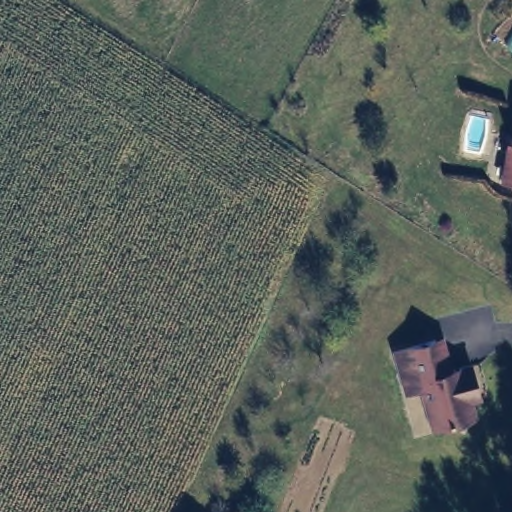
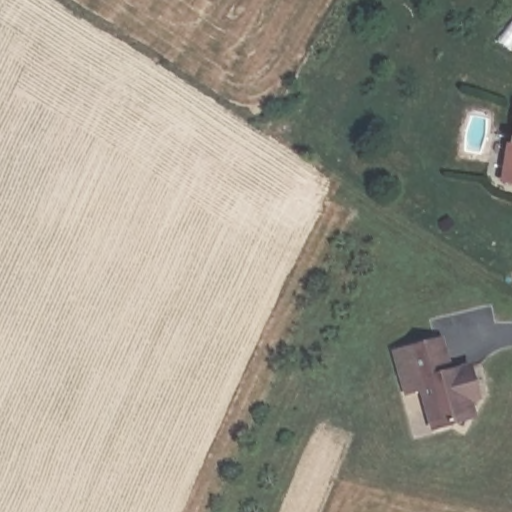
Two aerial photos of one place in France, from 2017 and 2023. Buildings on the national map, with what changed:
unchanged [(512,166),(512,179),(509,179),(512,166)]
unchanged [(431,402),(426,385),(416,387),(403,345),(441,333),(452,366),(476,360),(484,387),(477,392),(480,404),(466,422),(456,416),(444,420),(435,422),(431,402)]

